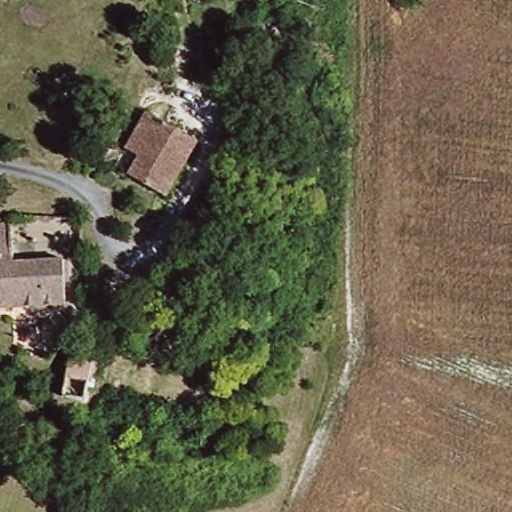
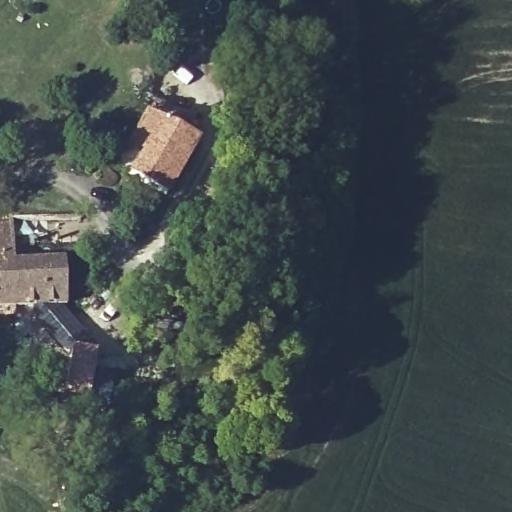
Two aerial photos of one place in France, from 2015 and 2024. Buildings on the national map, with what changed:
unchanged [(141,114),(194,131),(174,189),(129,175),(138,151),(129,149),(141,114)]
unchanged [(0,221),(18,218),(25,263),(48,259),(54,299),(0,307),(0,221)]

